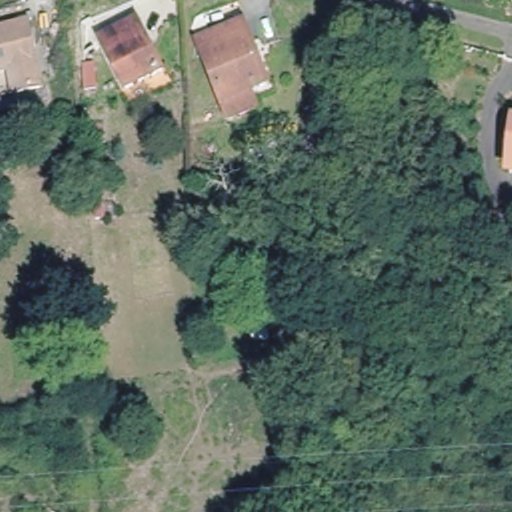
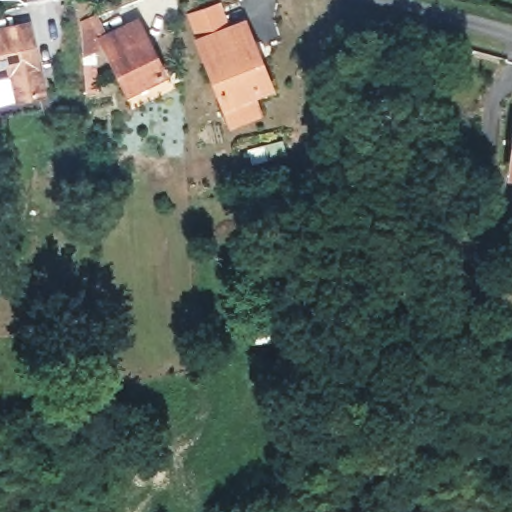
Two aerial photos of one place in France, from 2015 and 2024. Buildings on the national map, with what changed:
unchanged [(146,55),(151,52),(160,71),(127,89),(100,39),(134,21),(142,37),(138,40),(146,55)]
unchanged [(266,86),(225,106),(197,47),(237,27),(266,86)]
unchanged [(40,98),(13,100),(11,74),(0,74),(0,31),(35,28),(40,98)]
unchanged [(511,173),(512,164),(512,156),(512,173),(511,173)]

